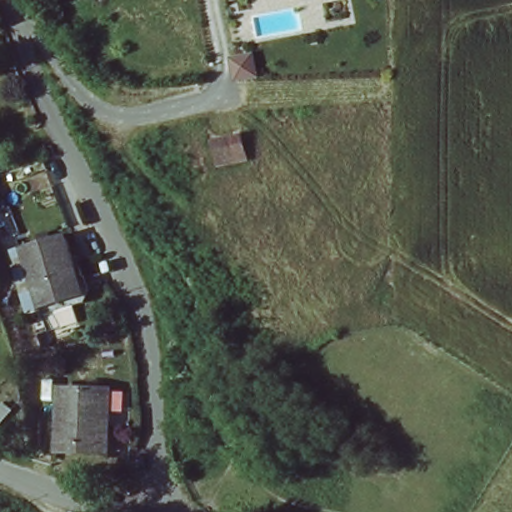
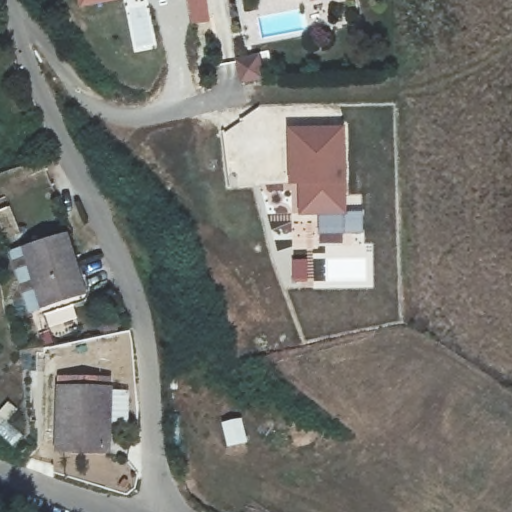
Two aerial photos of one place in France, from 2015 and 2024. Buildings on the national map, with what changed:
new [(75,0),(123,0),(77,10),(75,0)]
new [(188,26),(185,0),(208,0),(210,23),(188,26)]
unchanged [(257,51),(260,75),(234,80),(231,55),(257,51)]
new [(345,126),(345,215),(299,217),(298,186),(287,187),(287,130),(345,126)]
demolished [(247,136),(253,161),(225,167),(220,142),(247,136)]
unchanged [(40,312),(25,274),(16,252),(57,234),(64,254),(80,296),(40,312)]
unchanged [(66,387),(113,389),(112,453),(65,451),(66,387)]

